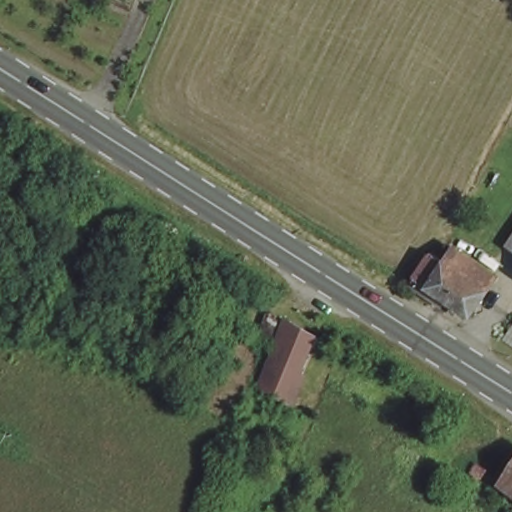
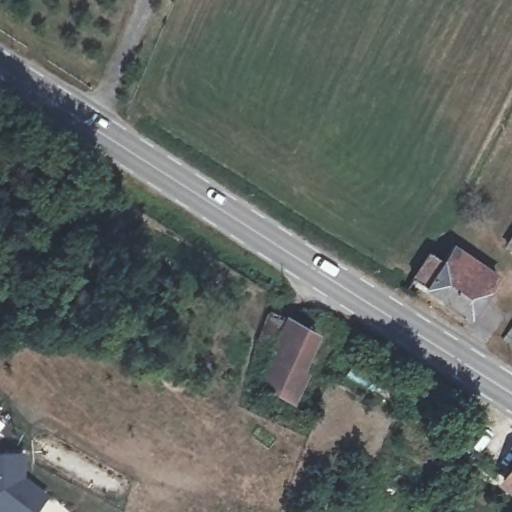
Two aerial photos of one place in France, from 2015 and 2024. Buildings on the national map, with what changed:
unchanged [(512,243),(512,255),(506,251),(512,243)]
unchanged [(431,255),(446,265),(455,251),(498,276),(470,315),(417,280),(431,255)]
unchanged [(311,328),(287,392),(258,381),(272,346),(282,317),(311,328)]
new [(0,512),(0,451),(23,451),(25,477),(48,494),(34,512),(0,512)]
unchanged [(512,465),(512,485),(502,479),(512,465)]

